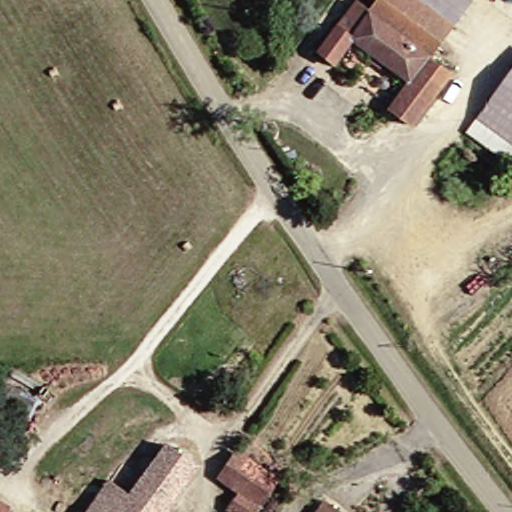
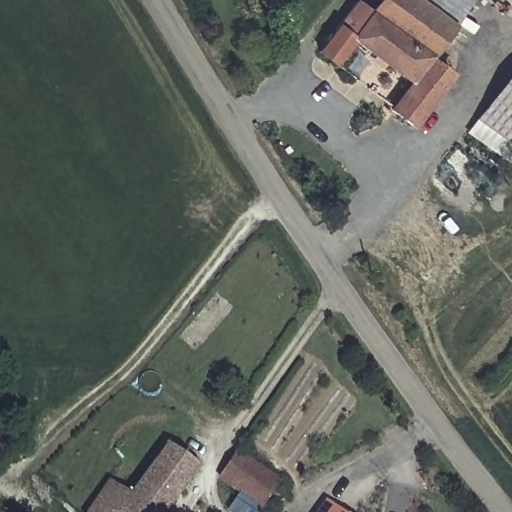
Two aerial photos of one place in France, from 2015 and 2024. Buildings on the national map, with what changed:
unchanged [(409,116),(392,104),(409,80),(355,36),(338,57),(320,44),(338,22),(355,0),(365,0),(377,9),(379,11),(388,0),(426,0),(460,25),(433,57),(447,69),(452,72),(414,120),(409,116)]
unchanged [(460,25),(426,0),(478,0),(460,25)]
unchanged [(493,121),(512,97),(512,137),(493,121)]
unchanged [(15,430),(0,421),(0,377),(40,399),(21,433),(15,430)]
unchanged [(168,512),(96,512),(113,487),(135,500),(160,465),(174,445),(202,464),(168,512)]
unchanged [(138,451),(160,465),(135,500),(113,487),(138,451)]
unchanged [(252,491),(231,477),(236,470),(246,453),(287,483),(267,512),(242,512),(240,510),(252,491)]
unchanged [(19,512),(0,512),(0,499),(20,510),(19,512)]
unchanged [(352,512),(327,512),(337,500),(352,512)]

